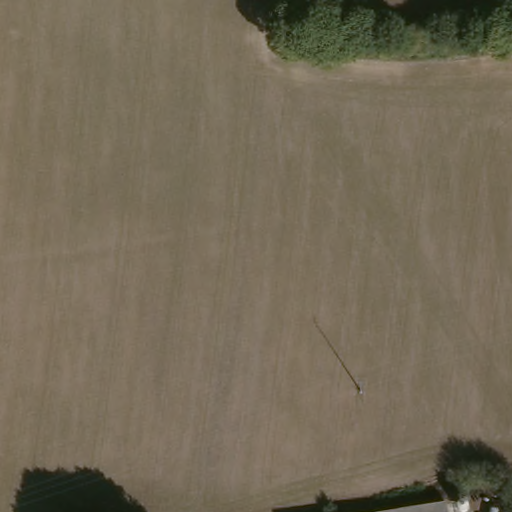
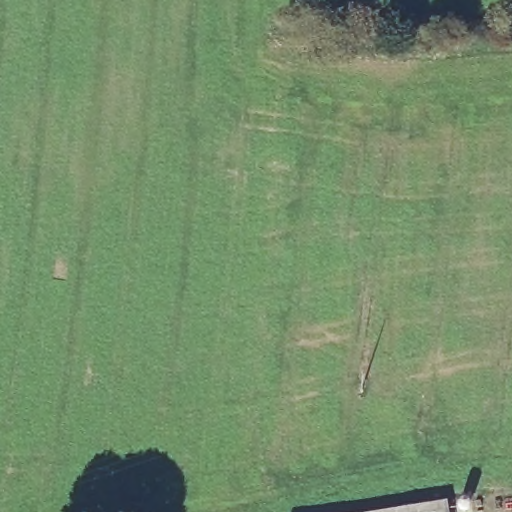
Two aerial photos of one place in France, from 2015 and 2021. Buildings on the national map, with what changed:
unchanged [(446,512),(380,512),(444,502),(446,512)]

